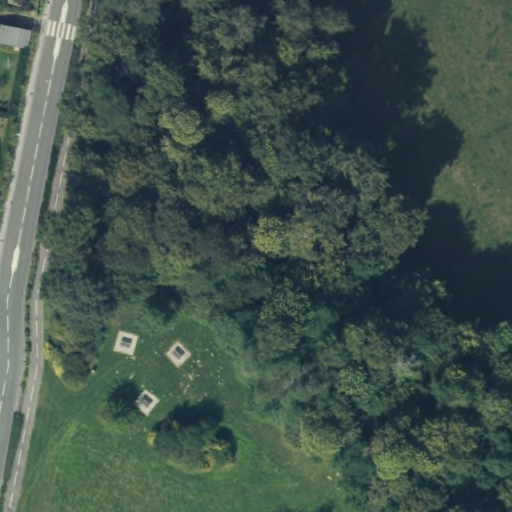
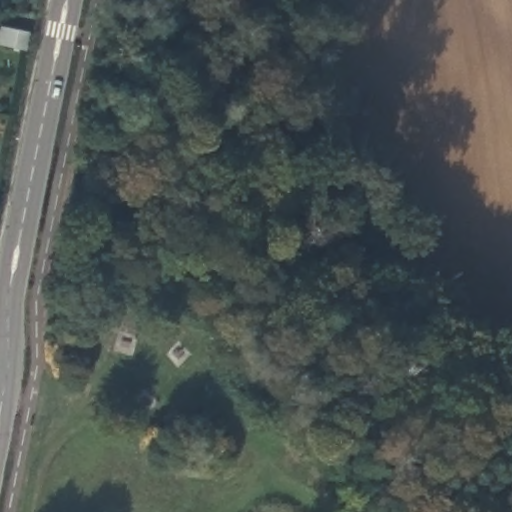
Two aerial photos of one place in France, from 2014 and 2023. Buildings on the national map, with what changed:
unchanged [(29,31),(26,49),(1,44),(5,26),(29,31)]

